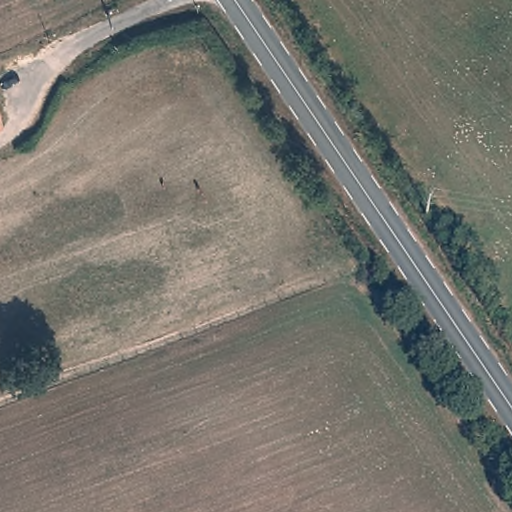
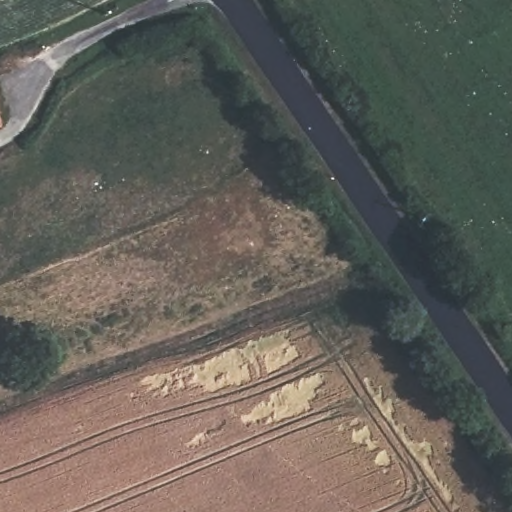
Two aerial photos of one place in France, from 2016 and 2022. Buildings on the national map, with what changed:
unchanged [(6,132),(0,133),(0,106),(6,132)]

